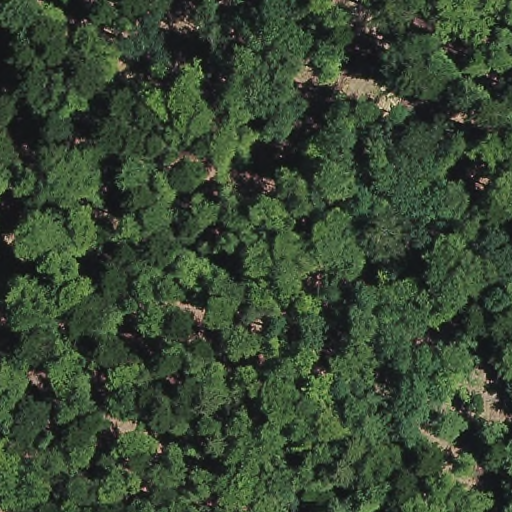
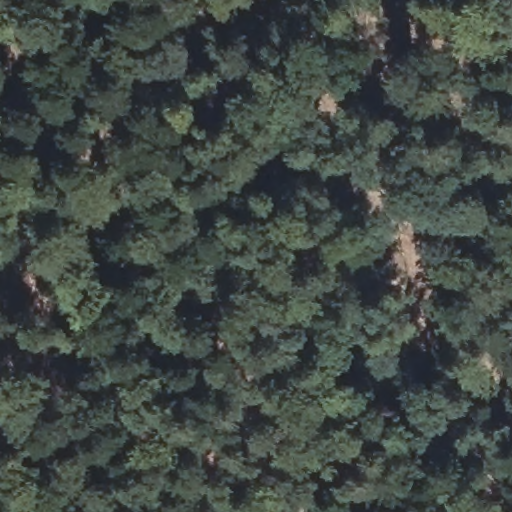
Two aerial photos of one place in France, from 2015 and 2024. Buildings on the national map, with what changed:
[]

